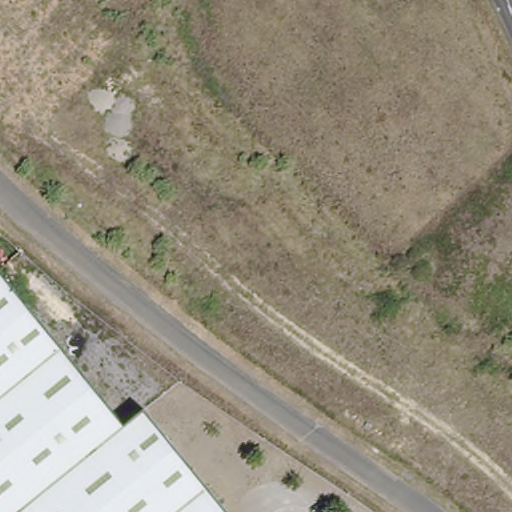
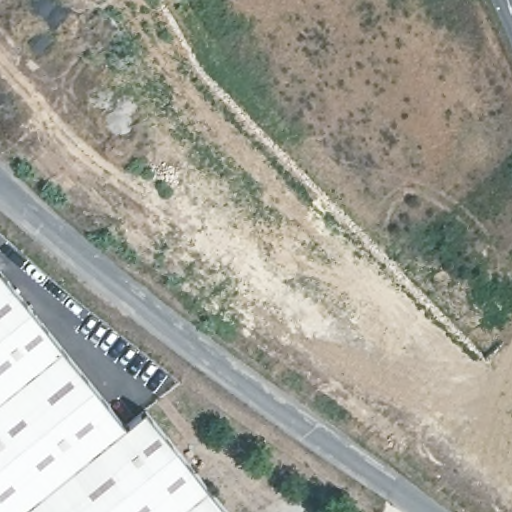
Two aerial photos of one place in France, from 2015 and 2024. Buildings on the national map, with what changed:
unchanged [(13,512),(0,512),(0,275),(121,425),(13,512)]
unchanged [(226,512),(13,512),(121,425),(142,408),(226,512)]

